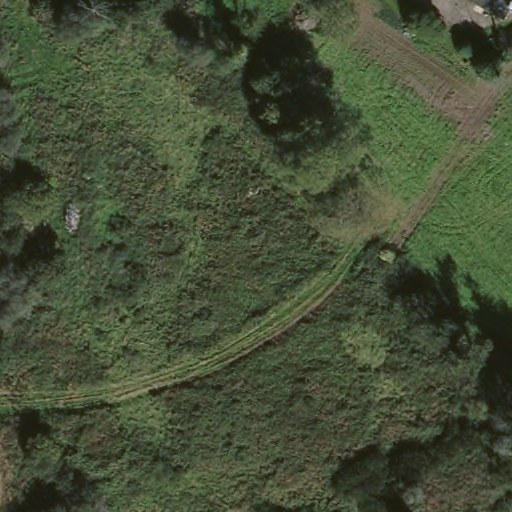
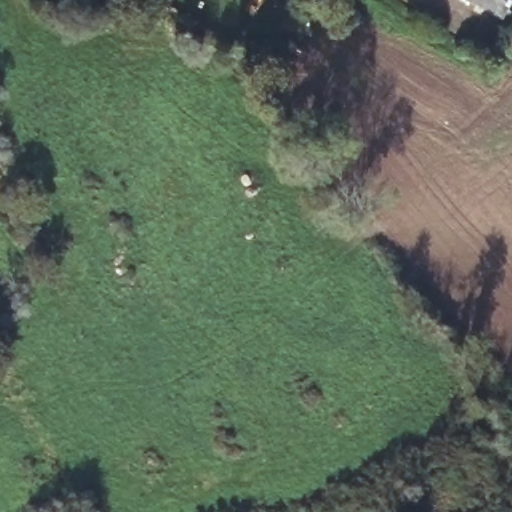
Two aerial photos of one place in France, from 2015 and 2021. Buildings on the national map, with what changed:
unchanged [(501,20),(466,2),(463,0),(509,0),(501,20)]

